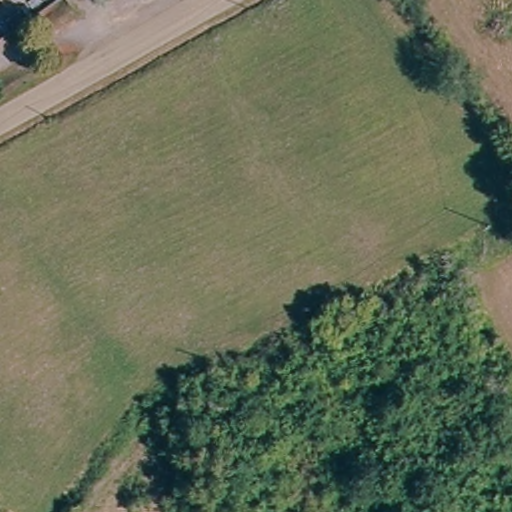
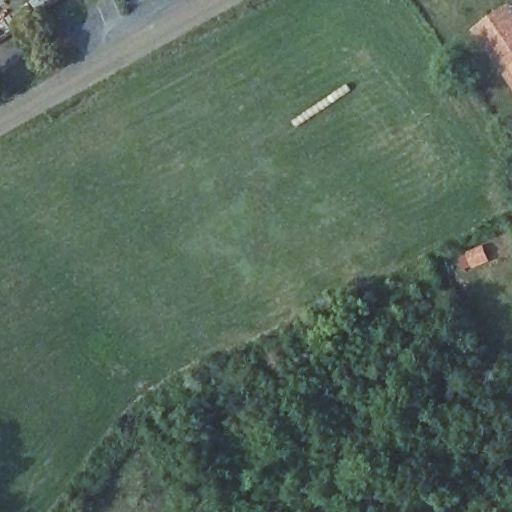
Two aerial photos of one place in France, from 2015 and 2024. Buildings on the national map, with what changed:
new [(509,5),(512,8),(512,87),(472,32),(509,5)]

